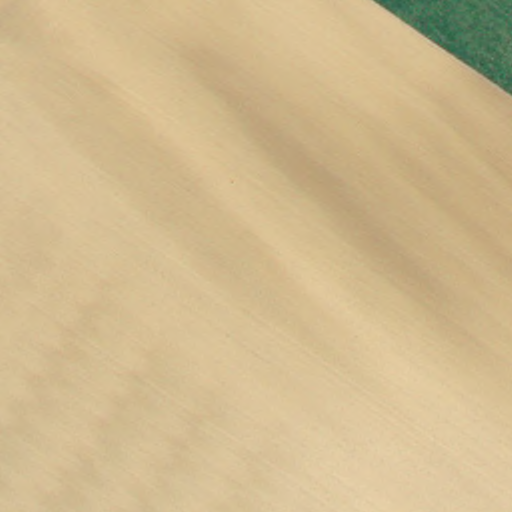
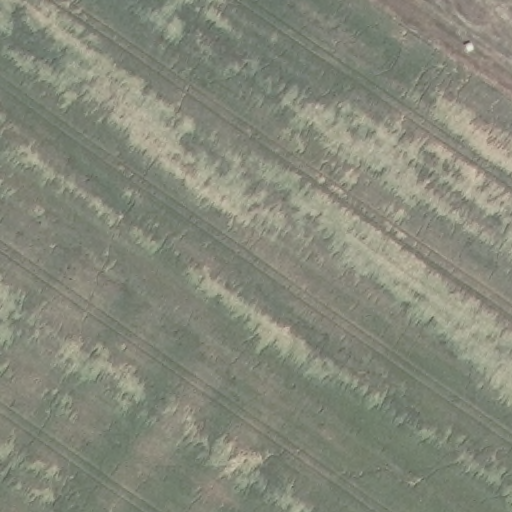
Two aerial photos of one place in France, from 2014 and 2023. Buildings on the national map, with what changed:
[]

